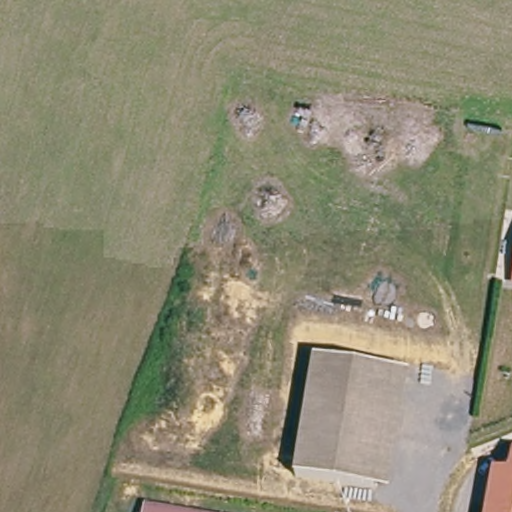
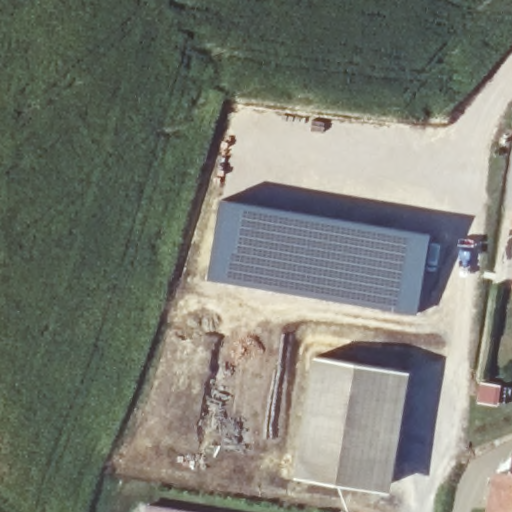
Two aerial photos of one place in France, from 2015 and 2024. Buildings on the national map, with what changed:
new [(418,314),(209,279),(221,198),(432,231),(418,314)]
unchanged [(303,477),(318,358),(398,367),(383,487),(303,477)]
unchanged [(412,369),(397,488),(383,487),(398,367),(412,369)]
unchanged [(493,467),(512,469),(512,512),(486,512),(493,467)]
unchanged [(145,499),(219,512),(143,512),(145,499)]

